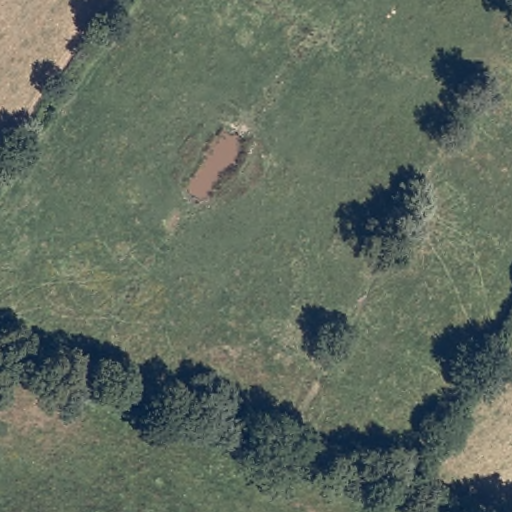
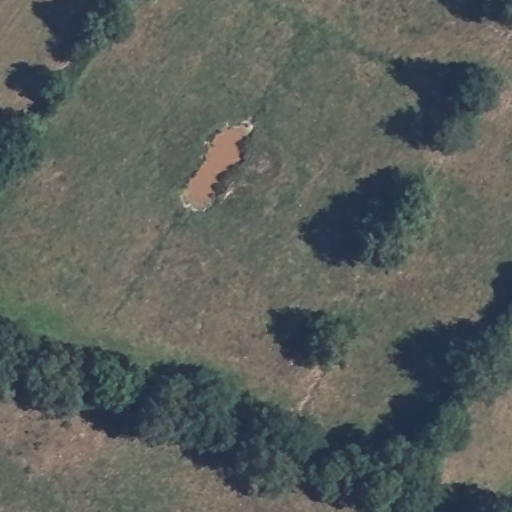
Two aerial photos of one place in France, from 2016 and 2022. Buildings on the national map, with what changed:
[]

